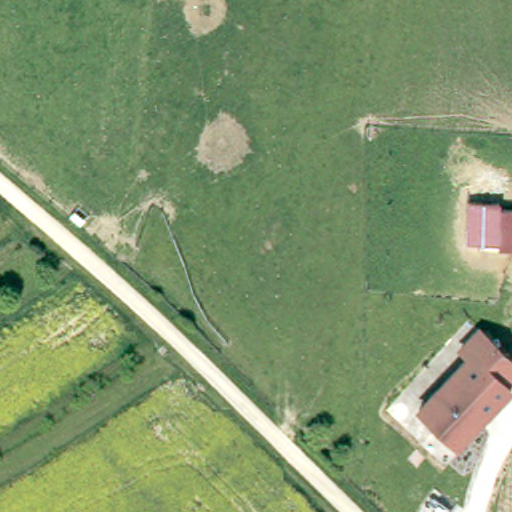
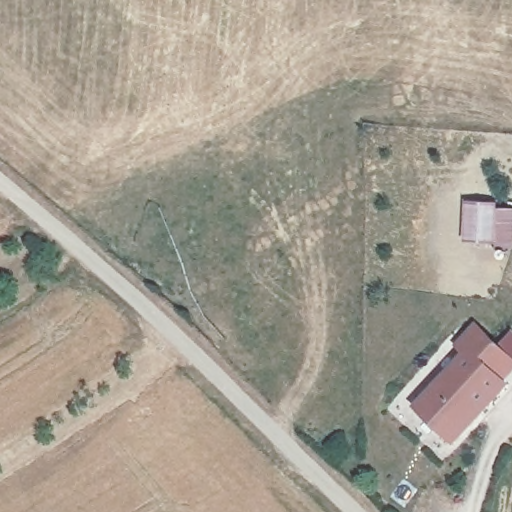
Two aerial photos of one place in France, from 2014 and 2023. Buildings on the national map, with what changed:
unchanged [(512,204),(512,244),(466,240),(465,198),(512,204)]
unchanged [(435,425),(416,408),(467,355),(458,347),(476,328),(512,362),(512,373),(503,382),(507,387),(482,414),(454,444),(435,425)]

